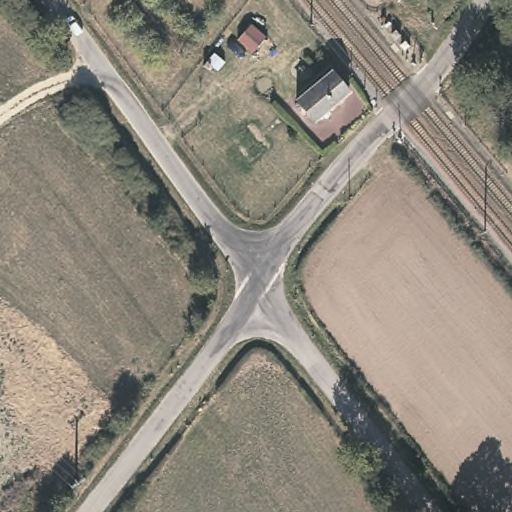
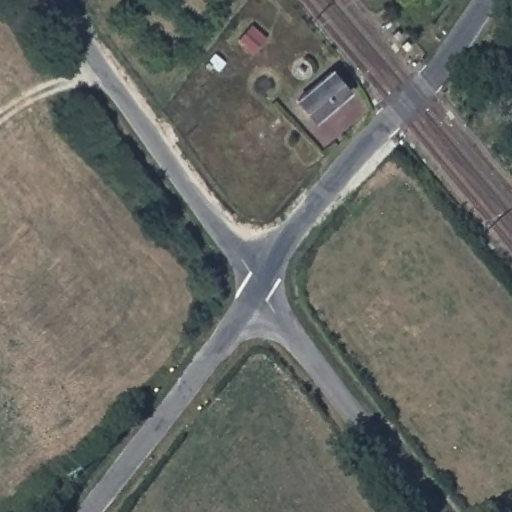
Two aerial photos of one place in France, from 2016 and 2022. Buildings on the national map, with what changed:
unchanged [(332,72),(350,93),(315,123),(297,101),(332,72)]

